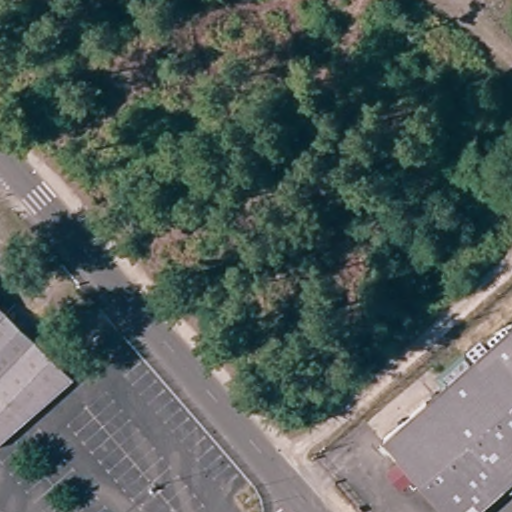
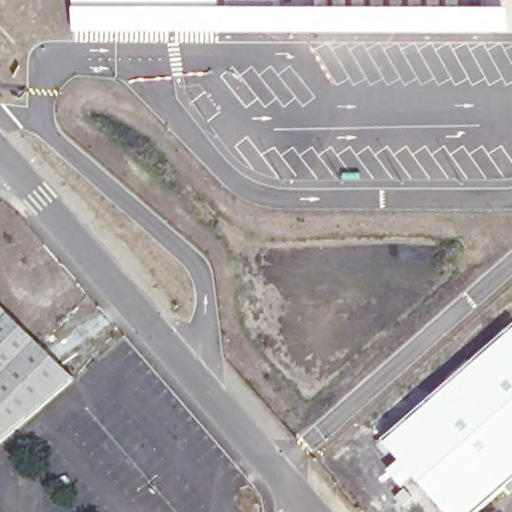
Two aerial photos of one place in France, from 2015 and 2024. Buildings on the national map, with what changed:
new [(217,32),(73,31),(73,0),(218,0),(217,32)]
new [(275,12),(226,12),(226,0),(275,0),(275,12)]
new [(217,12),(500,13),(500,33),(217,32),(217,12)]
unchanged [(0,298),(76,379),(0,445),(0,298)]
unchanged [(475,512),(457,512),(390,434),(432,397),(434,400),(512,332),(512,479),(475,512)]

